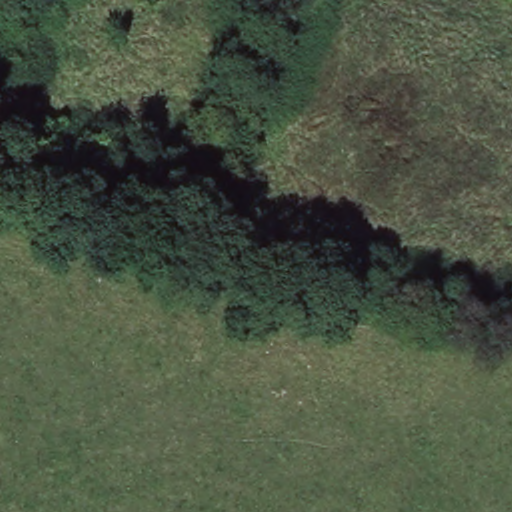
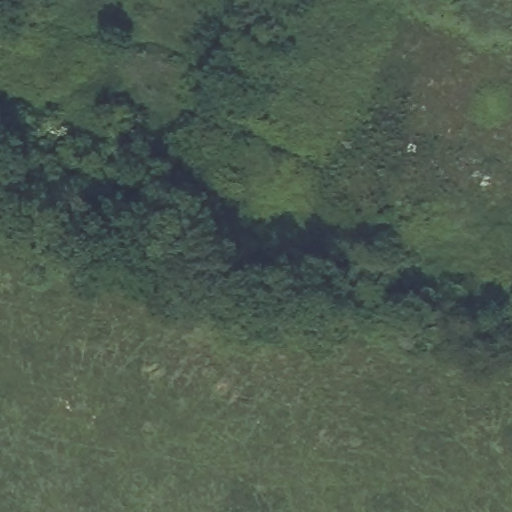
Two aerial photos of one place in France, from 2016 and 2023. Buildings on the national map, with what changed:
unchanged [(10,188),(0,184),(0,143),(14,148),(8,164),(19,168),(10,188)]

